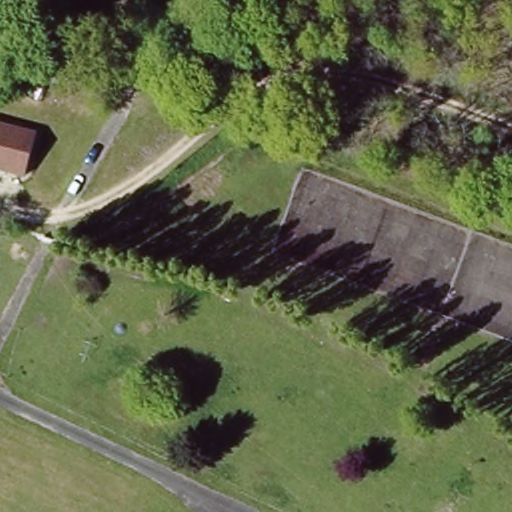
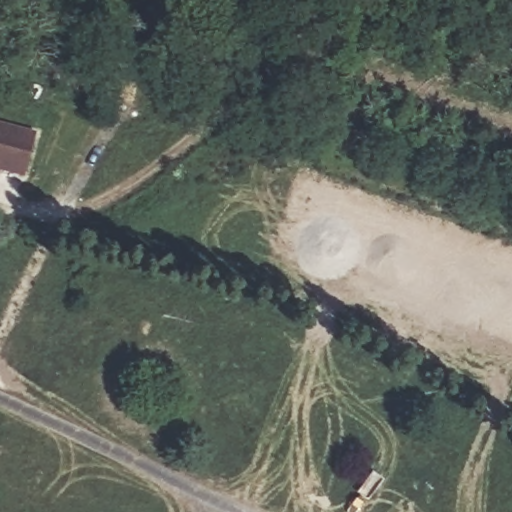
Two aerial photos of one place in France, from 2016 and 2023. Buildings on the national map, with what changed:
unchanged [(182,0),(181,7),(157,0),(182,0)]
unchanged [(38,131),(24,179),(0,171),(0,119),(38,131)]

